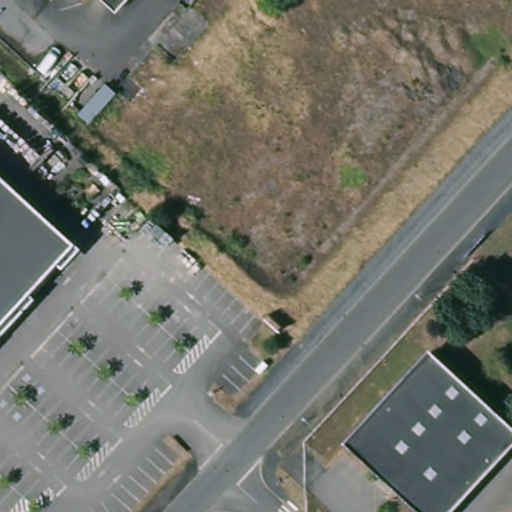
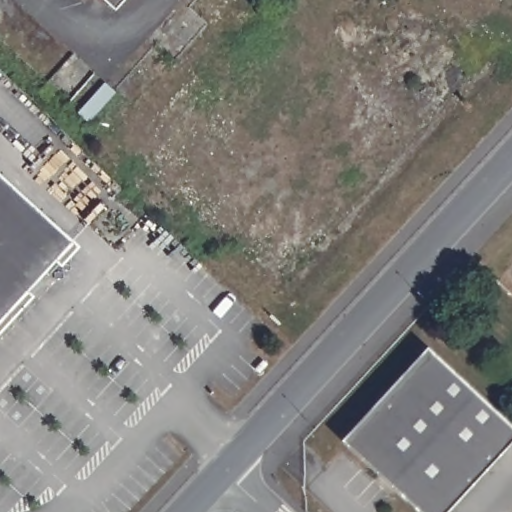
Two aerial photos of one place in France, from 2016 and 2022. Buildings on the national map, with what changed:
unchanged [(104,0),(119,0),(112,7),(104,0)]
unchanged [(0,172),(74,241),(0,320),(0,172)]
unchanged [(512,423),(512,439),(444,512),(420,512),(344,442),(432,348),(512,423)]

